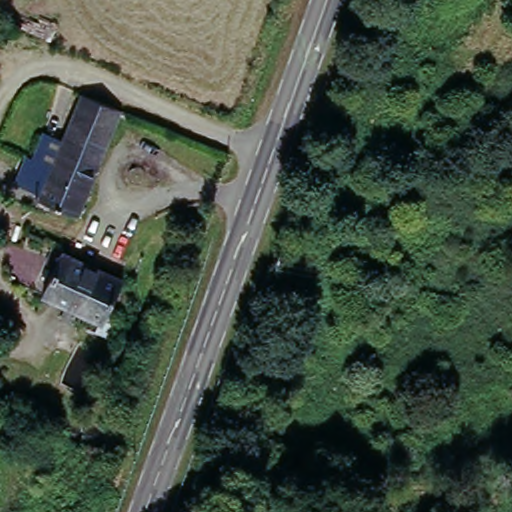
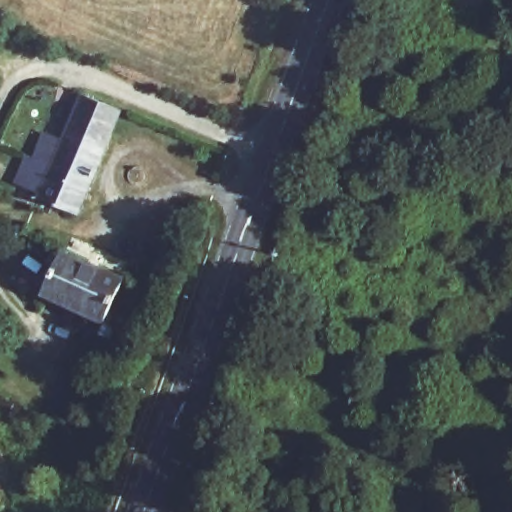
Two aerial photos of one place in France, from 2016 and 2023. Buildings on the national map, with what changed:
unchanged [(117,137),(76,121),(86,98),(127,114),(117,137)]
unchanged [(46,140),(64,148),(76,121),(117,137),(80,221),(40,201),(41,200),(16,189),(28,160),(35,163),(46,140)]
unchanged [(57,255),(119,278),(101,324),(39,298),(57,255)]

